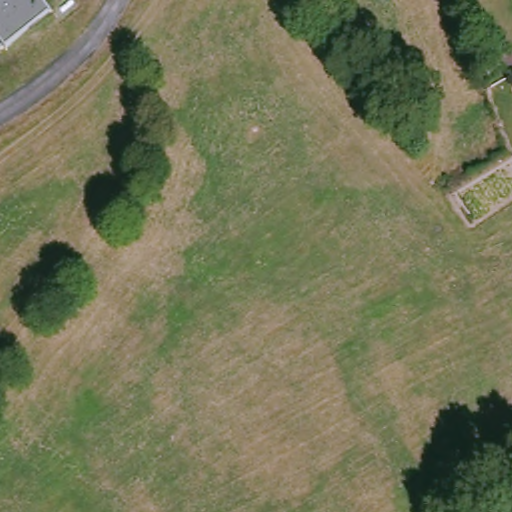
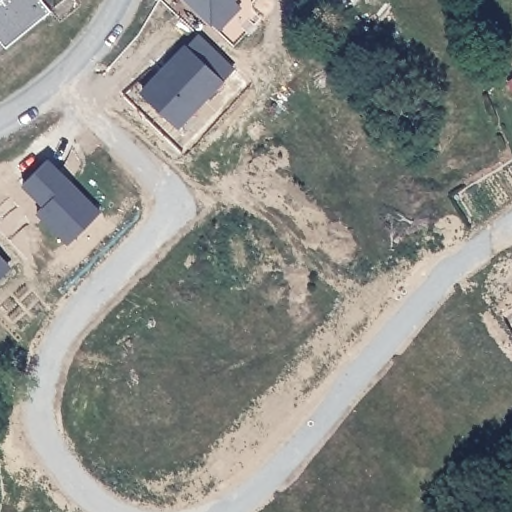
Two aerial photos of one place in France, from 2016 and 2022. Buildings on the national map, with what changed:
unchanged [(5,49),(0,42),(0,0),(42,0),(51,11),(5,49)]
new [(189,0),(232,0),(211,21),(189,0)]
new [(178,124),(144,91),(185,47),(187,49),(200,35),(233,66),(220,80),(178,124)]
new [(42,206),(23,186),(50,160),(100,210),(68,243),(37,211),(42,206)]
new [(3,270),(0,273),(0,267),(3,270)]

